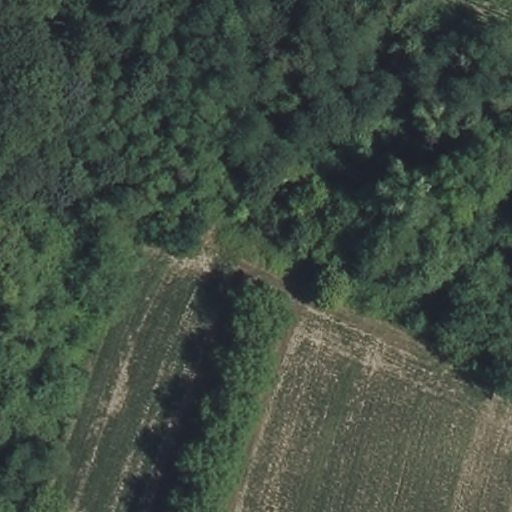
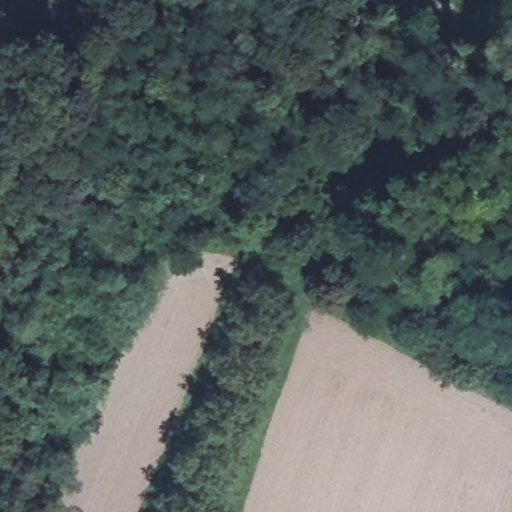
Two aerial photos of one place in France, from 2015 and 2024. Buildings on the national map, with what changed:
unchanged [(278,177),(285,162),(299,168),(305,153),(328,162),(316,193),(278,177)]

